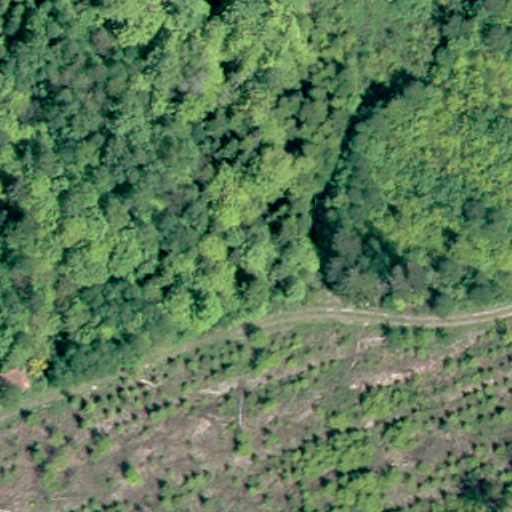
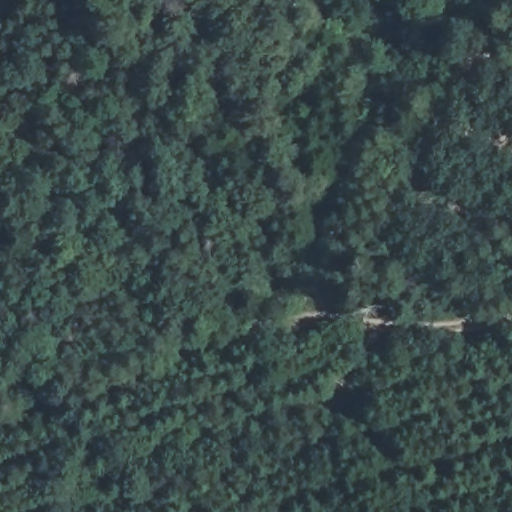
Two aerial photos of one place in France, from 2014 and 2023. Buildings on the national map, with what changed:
unchanged [(45,356),(55,378),(0,399),(0,374),(45,356)]

